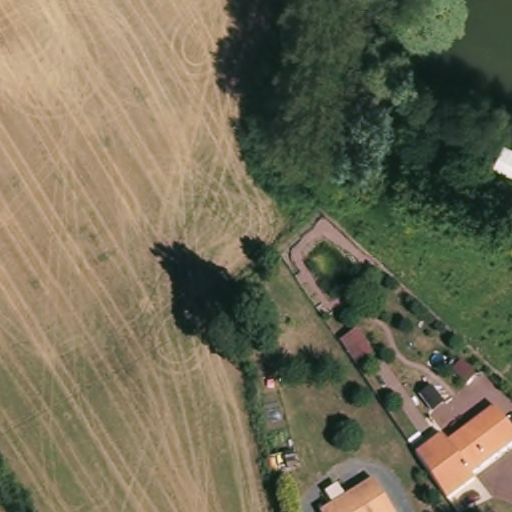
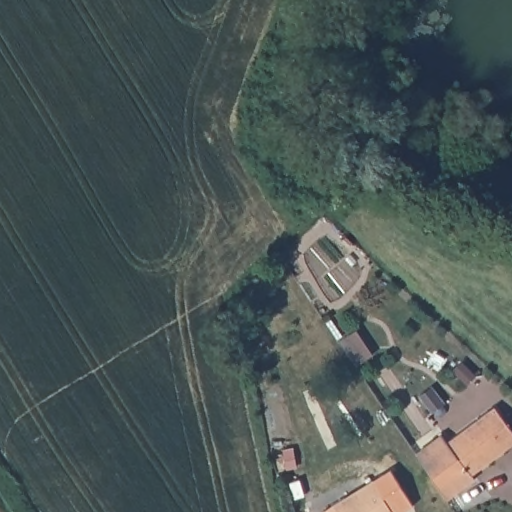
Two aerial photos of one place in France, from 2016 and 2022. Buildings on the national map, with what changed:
unchanged [(436,436),(442,444),(492,408),(512,436),(512,448),(468,480),(471,485),(443,505),(413,452),(436,436)]
unchanged [(370,477),(390,512),(320,512),(370,477)]

